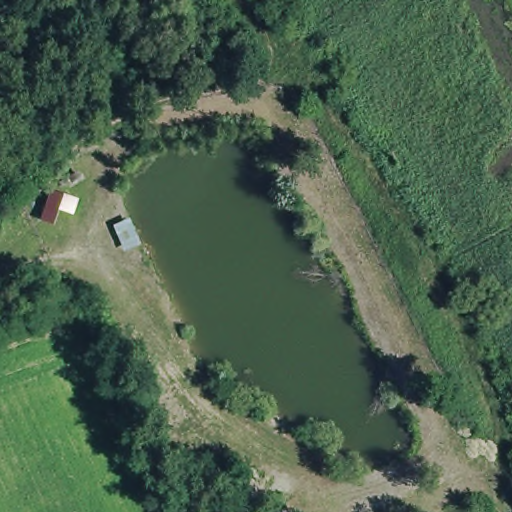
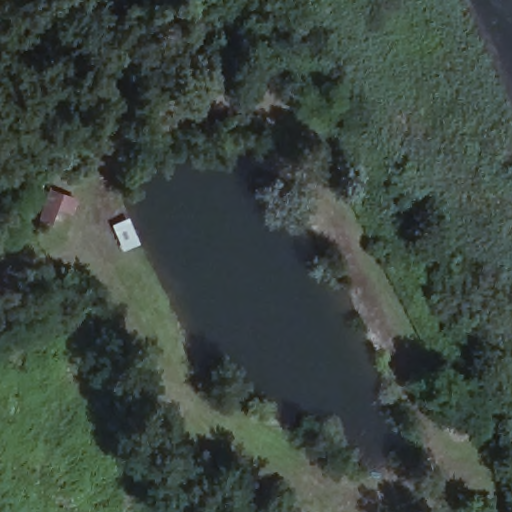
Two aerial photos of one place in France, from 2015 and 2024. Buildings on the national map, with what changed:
unchanged [(52,190),(77,199),(72,213),(60,209),(54,222),(42,218),(52,190)]

